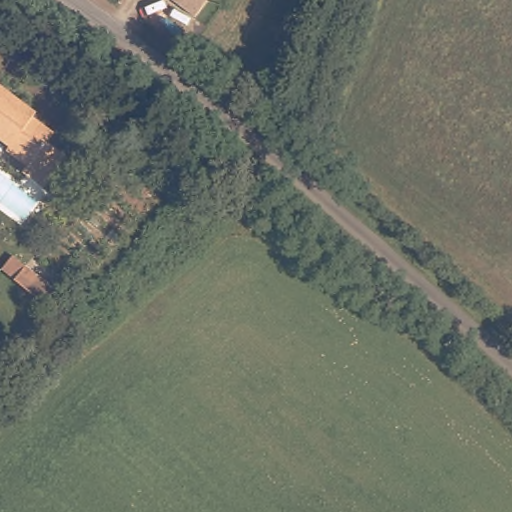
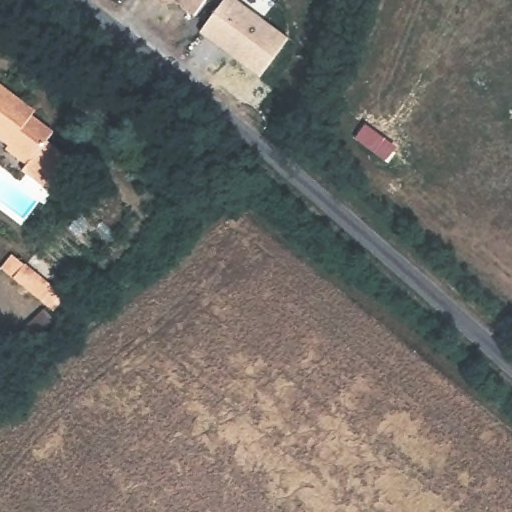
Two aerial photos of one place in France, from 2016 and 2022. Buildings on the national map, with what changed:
unchanged [(169,0),(208,0),(193,18),(169,0)]
new [(199,34),(224,0),(235,0),(289,40),(259,78),(199,34)]
unchanged [(19,150),(0,135),(0,87),(1,85),(38,113),(34,117),(63,139),(57,146),(75,160),(51,192),(31,177),(36,170),(16,155),(19,150)]
unchanged [(53,311),(41,301),(1,269),(12,255),(52,288),(64,298),(53,311)]
unchanged [(54,322),(28,346),(18,334),(43,310),(54,322)]

